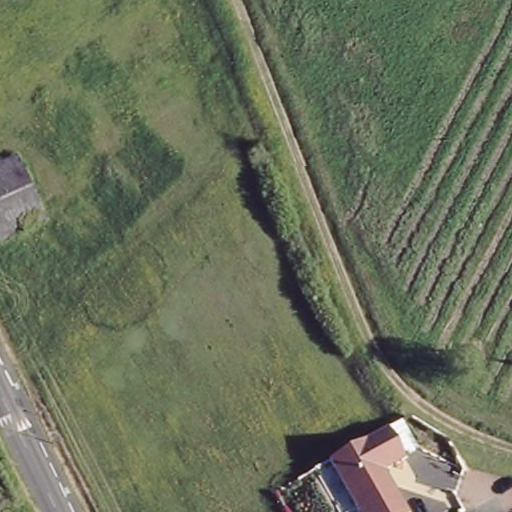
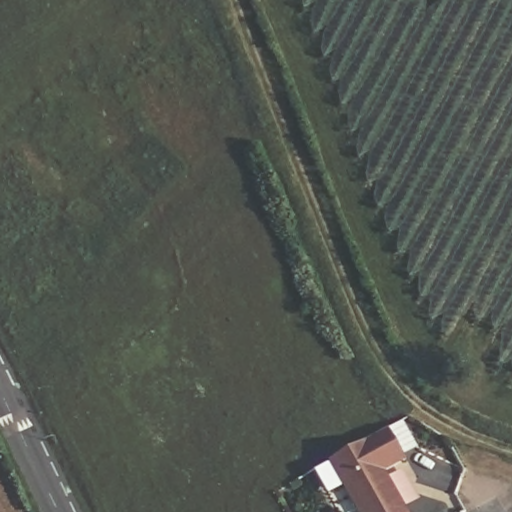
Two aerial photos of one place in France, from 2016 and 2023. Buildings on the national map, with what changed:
demolished [(47,224),(0,243),(0,162),(19,154),(47,224)]
unchanged [(406,462),(384,475),(407,512),(356,512),(327,461),(386,428),(406,462)]

